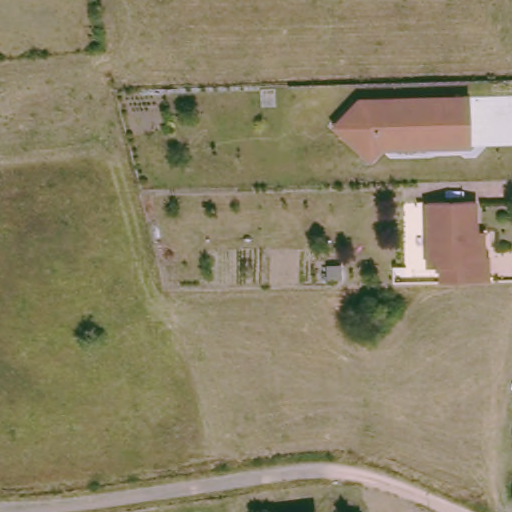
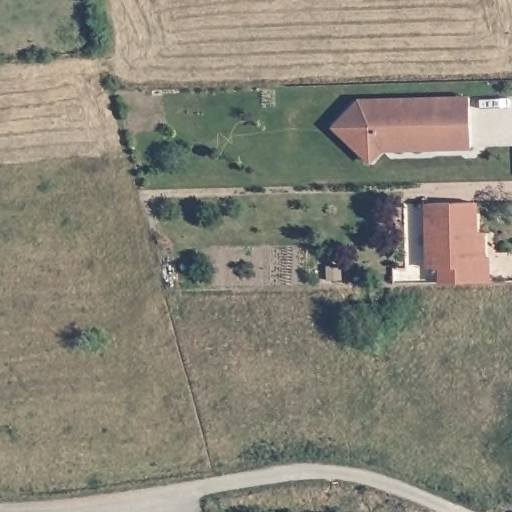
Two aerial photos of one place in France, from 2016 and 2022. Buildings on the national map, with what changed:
unchanged [(340,132),(333,125),(358,101),(377,100),(469,96),(472,145),(436,146),(380,148),(370,159),(365,155),(340,132)]
unchanged [(480,253),(485,252),(485,277),(438,278),(438,264),(426,264),(423,199),(470,197),(472,228),(479,228),(480,253)]

